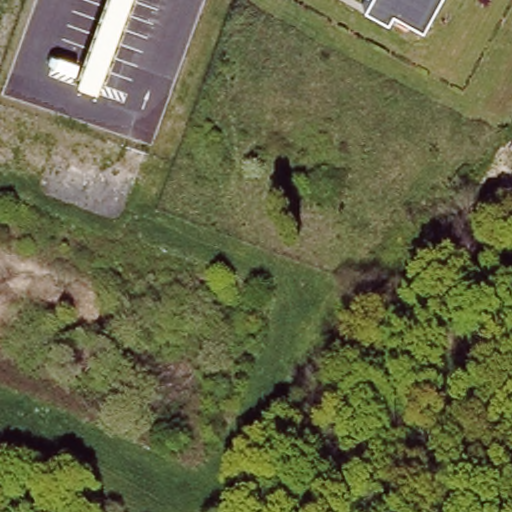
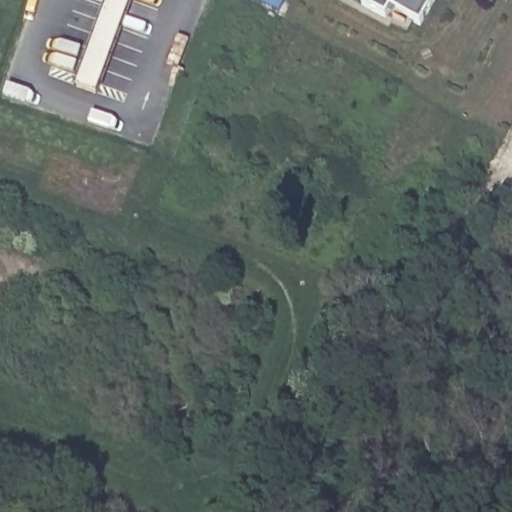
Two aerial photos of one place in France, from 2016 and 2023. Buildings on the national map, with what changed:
unchanged [(419,25),(389,9),(384,17),(363,5),(365,0),(432,0),(419,25)]

